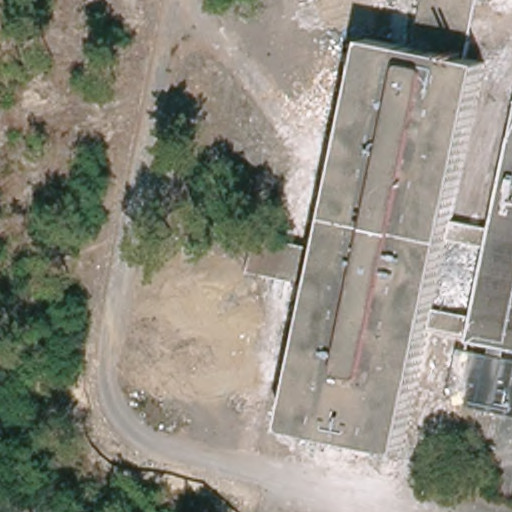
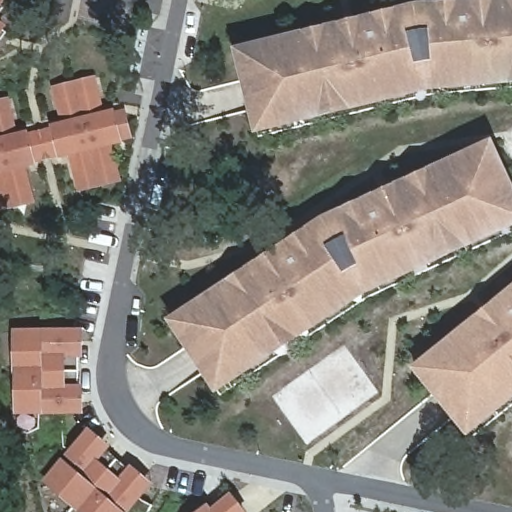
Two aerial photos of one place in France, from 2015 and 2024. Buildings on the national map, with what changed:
new [(0,0),(4,0),(0,6),(0,0)]
new [(232,47),(416,2),(440,0),(512,0),(512,83),(428,89),(254,133),(232,47)]
demolished [(459,54),(390,40),(399,0),(470,0),(459,54)]
new [(0,32),(0,21),(5,25),(0,32)]
demolished [(305,246),(317,248),(362,34),(390,40),(459,54),(478,58),(445,218),(423,324),(397,448),(280,424),(310,281),(298,278),(299,276),(305,248),(305,246)]
new [(30,129),(51,124),(62,121),(52,85),(95,74),(106,109),(115,106),(123,104),(132,138),(122,143),(114,145),(121,179),(77,191),(70,155),(59,158),(36,164),(26,166),(33,201),(0,210),(0,98),(9,96),(18,131),(30,129)]
demolished [(489,227),(512,116),(512,343),(423,324),(445,218),(489,227)]
new [(167,319),(322,215),(492,138),(512,182),(512,228),(365,294),(215,393),(167,319)]
new [(466,436),(410,367),(512,284),(512,398),(466,436)]
new [(78,331),(77,370),(15,374),(13,374),(12,331),(78,331)]
new [(77,370),(78,413),(17,414),(15,374),(77,370)]
new [(88,431),(118,457),(79,502),(49,475),(88,431)]
new [(149,484),(125,512),(91,512),(79,502),(118,457),(149,484)]
new [(245,512),(212,512),(232,495),(245,512)]
new [(211,512),(201,512),(207,507),(211,512)]

